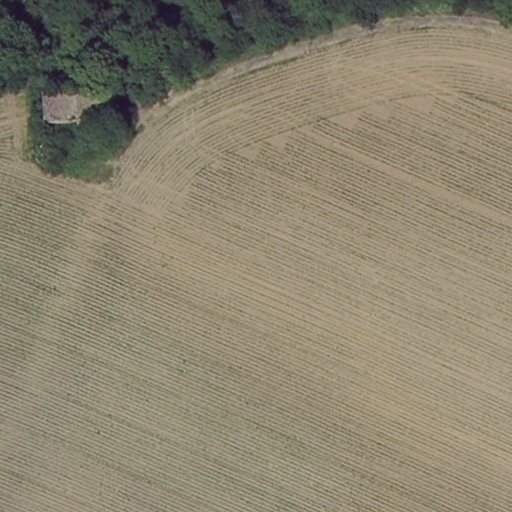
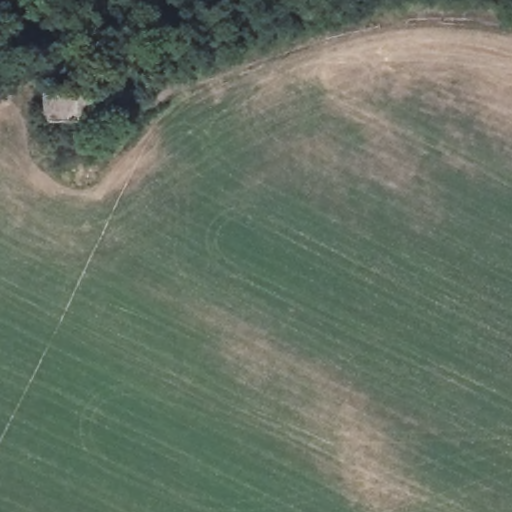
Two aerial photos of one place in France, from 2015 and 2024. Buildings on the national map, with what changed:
unchanged [(112,127),(44,129),(43,96),(111,93),(112,127)]

